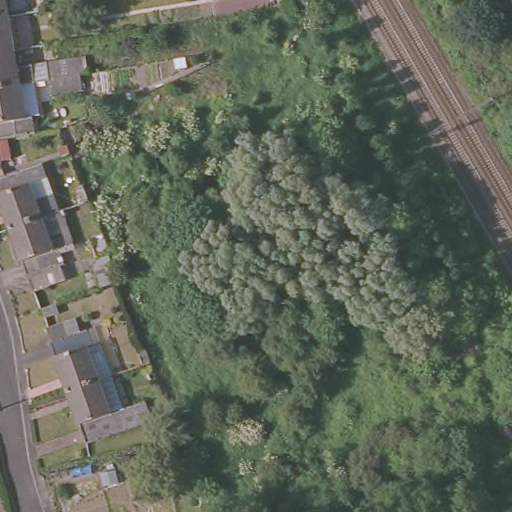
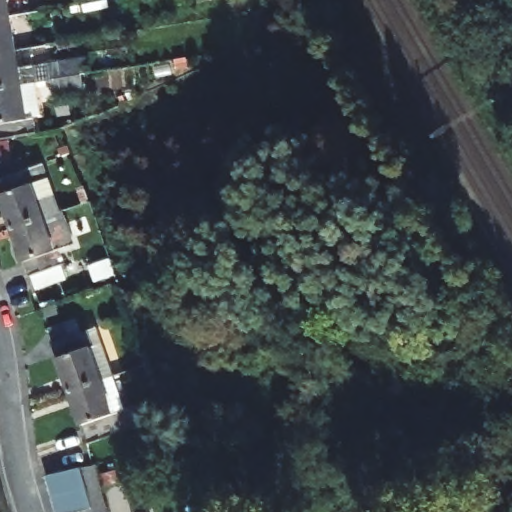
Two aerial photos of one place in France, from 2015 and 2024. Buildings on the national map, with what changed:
unchanged [(0,12),(0,0),(3,0),(5,12),(0,12)]
unchanged [(297,22),(286,0),(313,0),(320,12),(297,22)]
unchanged [(12,46),(0,47),(0,12),(5,12),(12,46)]
unchanged [(17,81),(0,83),(0,47),(12,46),(17,81)]
unchanged [(92,77),(62,82),(60,66),(68,64),(90,61),(92,77)]
unchanged [(35,77),(39,114),(28,115),(31,142),(20,144),(18,144),(1,147),(0,147),(0,83),(17,81),(35,77)]
unchanged [(0,174),(40,160),(45,176),(29,182),(42,215),(10,226),(0,197),(0,174)]
unchanged [(53,247),(70,242),(76,257),(27,274),(10,226),(42,215),(53,247)]
unchanged [(47,351),(93,333),(100,350),(82,356),(94,387),(64,399),(47,351)]
unchanged [(107,422),(125,416),(131,431),(81,447),(64,399),(94,387),(107,422)]
new [(51,474),(82,467),(87,488),(92,508),(76,512),(59,512),(55,495),(51,474)]

